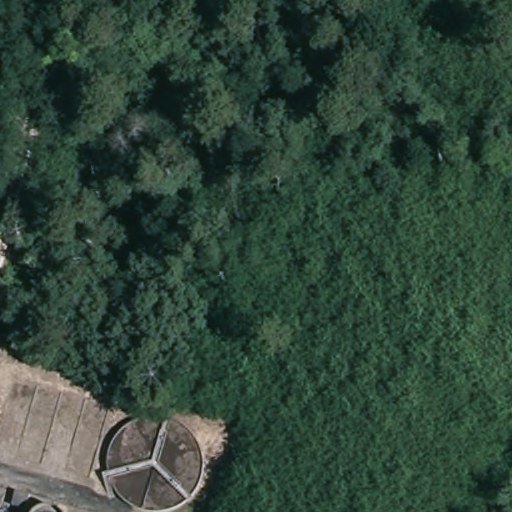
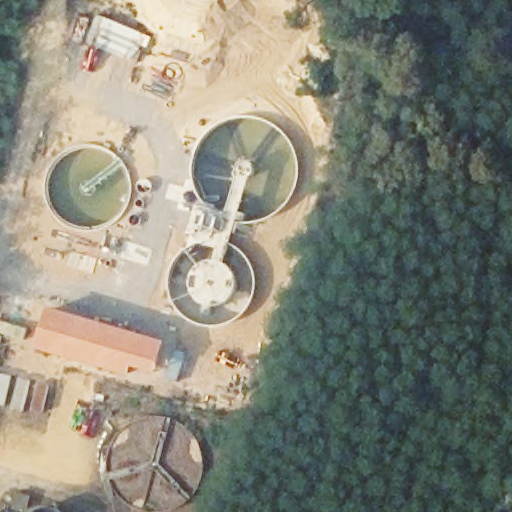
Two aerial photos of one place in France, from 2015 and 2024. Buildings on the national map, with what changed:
new [(49,307),(166,340),(155,374),(132,368),(130,376),(37,349),(49,307)]
unchanged [(29,493),(25,507),(10,505),(14,489),(29,493)]

